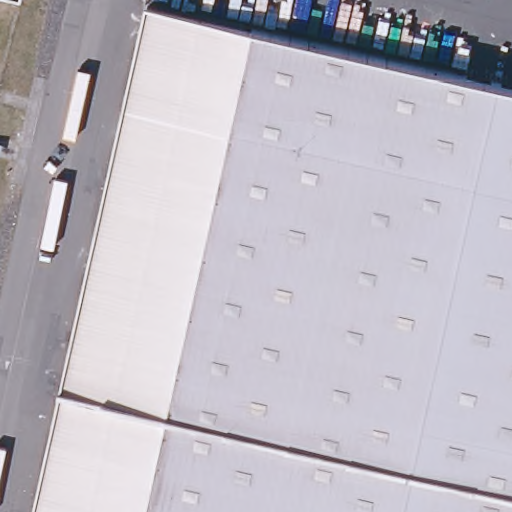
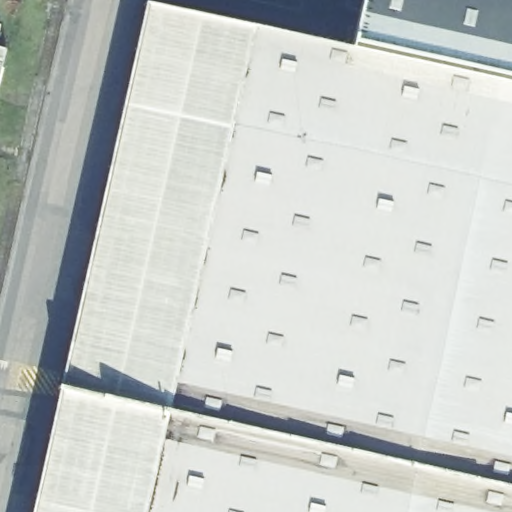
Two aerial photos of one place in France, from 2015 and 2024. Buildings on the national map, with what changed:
unchanged [(22,10),(0,5),(0,0),(24,0),(22,10)]
new [(361,0),(512,0),(512,82),(351,45),(361,0)]
unchanged [(161,1),(267,25),(178,408),(71,383),(161,1)]
unchanged [(267,25),(512,83),(512,512),(153,512),(178,408),(267,25)]
new [(0,69),(0,47),(5,48),(0,69)]
unchanged [(153,512),(41,512),(71,383),(178,408),(153,512)]

